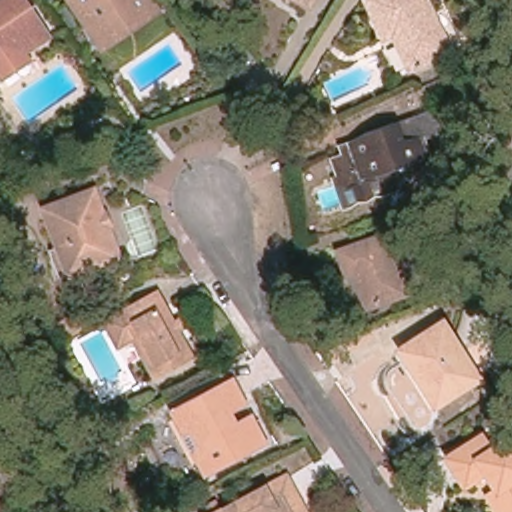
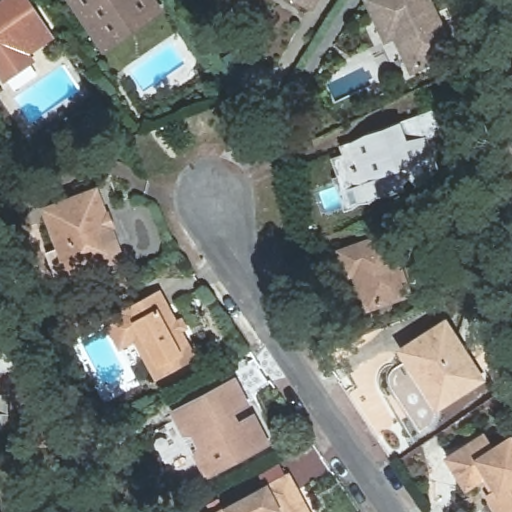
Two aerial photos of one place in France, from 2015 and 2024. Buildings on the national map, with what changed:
unchanged [(0,59),(0,3),(4,0),(26,0),(45,29),(0,59)]
unchanged [(159,13),(142,24),(136,16),(118,28),(124,37),(103,51),(71,3),(76,0),(150,0),(159,13)]
unchanged [(306,8),(290,0),(310,0),(306,8)]
unchanged [(454,51),(410,71),(394,37),(385,40),(365,0),(430,0),(454,51)]
unchanged [(401,181),(397,185),(393,180),(385,190),(386,193),(348,206),(340,178),(324,183),(318,164),(330,159),(327,151),(383,129),(416,118),(419,126),(424,124),(427,131),(421,133),(424,140),(410,144),(421,175),(401,181)]
unchanged [(119,252),(67,271),(43,208),(95,189),(119,252)]
unchanged [(408,294),(367,309),(355,273),(347,275),(338,251),(387,234),(408,294)]
unchanged [(193,357),(155,378),(135,340),(119,347),(105,321),(158,292),(193,357)]
unchanged [(81,309),(90,324),(67,339),(58,324),(81,309)]
unchanged [(481,379),(441,405),(423,376),(418,379),(400,350),(444,322),(481,379)]
unchanged [(267,438),(205,470),(194,449),(198,440),(191,428),(183,427),(172,407),(213,385),(222,402),(231,407),(238,419),(253,411),(267,438)]
unchanged [(496,491),(486,475),(466,487),(447,458),(482,435),(492,449),(510,438),(512,441),(512,512),(498,512),(488,496),(496,491)]
unchanged [(299,497),(290,501),(296,512),(218,512),(287,475),(299,497)]

